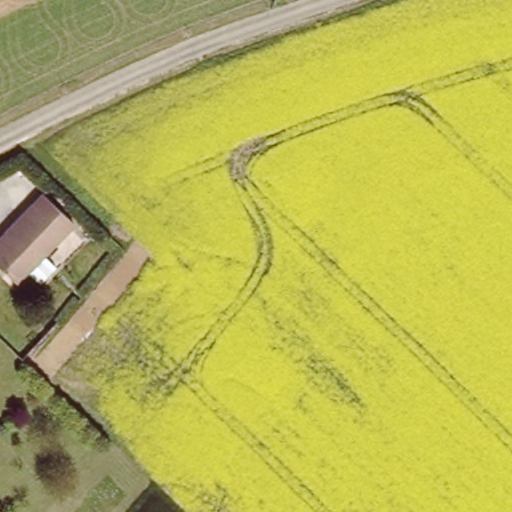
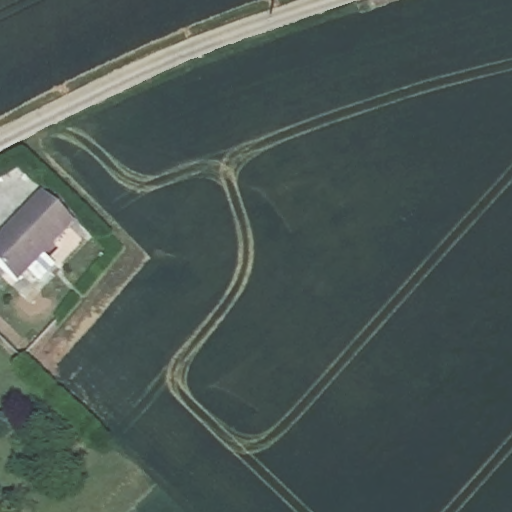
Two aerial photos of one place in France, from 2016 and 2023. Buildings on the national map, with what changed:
unchanged [(67,231),(10,288),(0,278),(0,240),(37,202),(67,231)]

